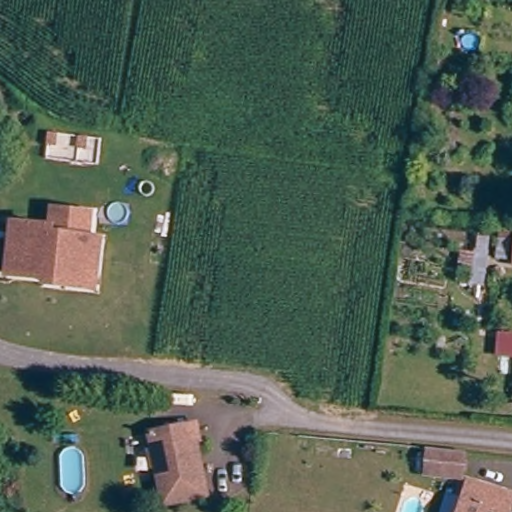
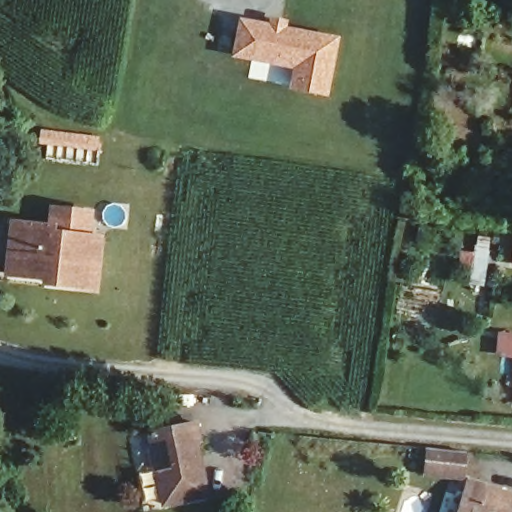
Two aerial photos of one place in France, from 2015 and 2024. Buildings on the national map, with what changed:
new [(269,23),(269,16),(289,19),(288,27),(339,36),(328,98),(288,90),(291,69),(232,59),(239,18),(269,23)]
unchanged [(49,274),(26,273),(10,272),(14,221),(30,223),(54,224),(56,207),(93,210),(90,234),(103,236),(98,284),(78,283),(49,279),(49,274)]
unchanged [(509,263),(512,242),(512,263),(509,263)]
unchanged [(203,441),(199,442),(210,489),(167,500),(150,431),(198,420),(203,441)]
unchanged [(464,476),(430,473),(433,448),(468,451),(464,476)]
unchanged [(476,484),(512,493),(512,512),(468,512),(476,484)]

